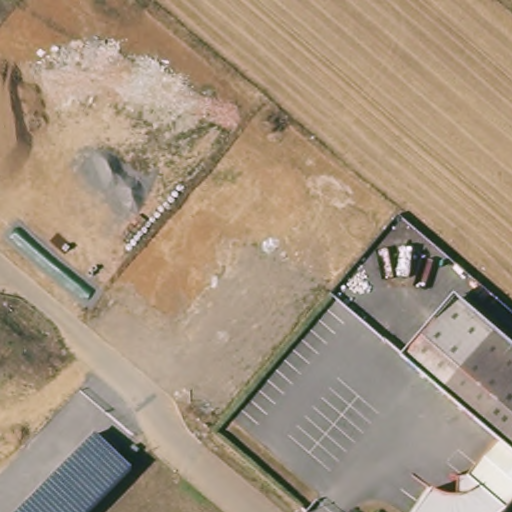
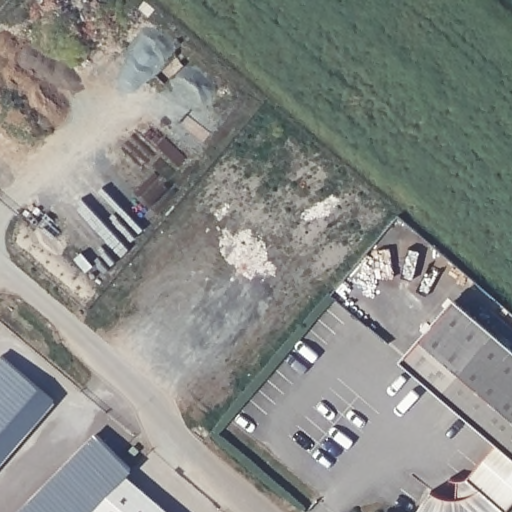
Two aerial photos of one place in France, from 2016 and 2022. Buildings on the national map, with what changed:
unchanged [(399,360),(454,297),(512,347),(512,508),(509,512),(415,512),(428,493),(445,499),(458,499),(458,480),(467,480),(498,446),(399,360)]
new [(58,401),(0,467),(0,361),(5,355),(58,401)]
unchanged [(93,512),(17,512),(94,433),(134,470),(93,512)]

